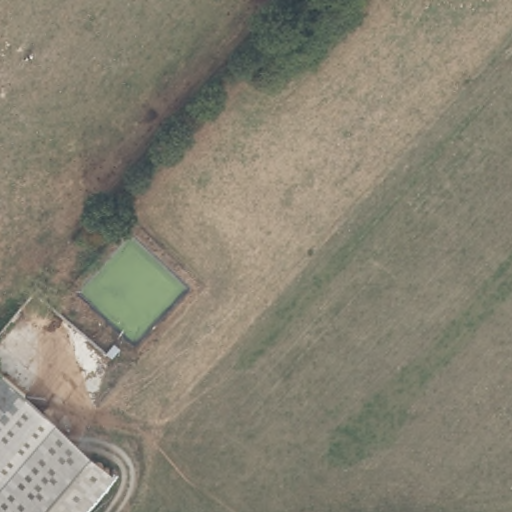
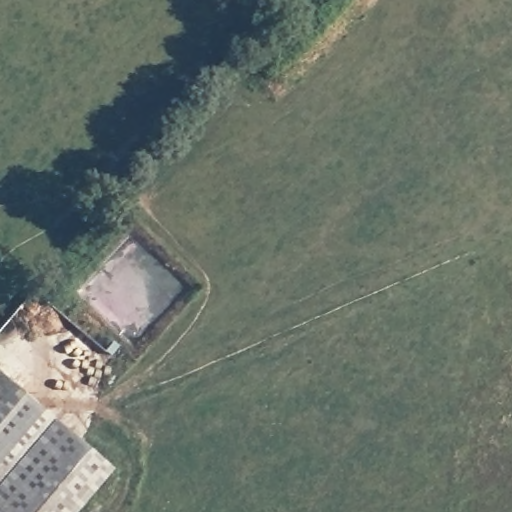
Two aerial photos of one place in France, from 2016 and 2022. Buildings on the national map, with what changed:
unchanged [(45,409),(54,417),(103,462),(115,473),(79,512),(0,512),(0,370),(1,368),(45,409)]

